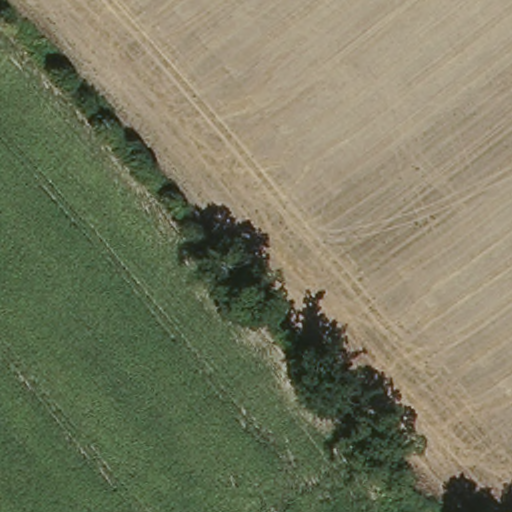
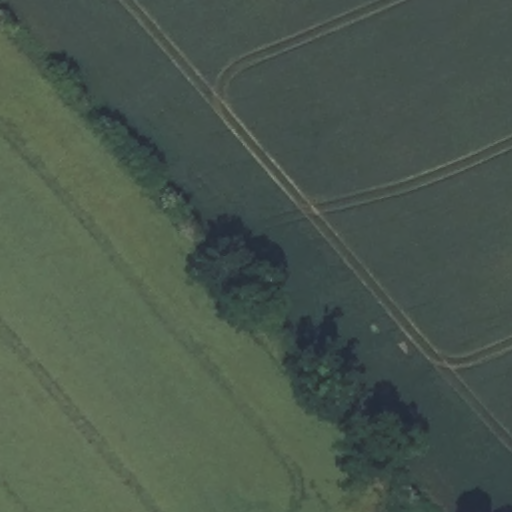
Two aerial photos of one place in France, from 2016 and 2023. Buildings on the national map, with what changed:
[]

